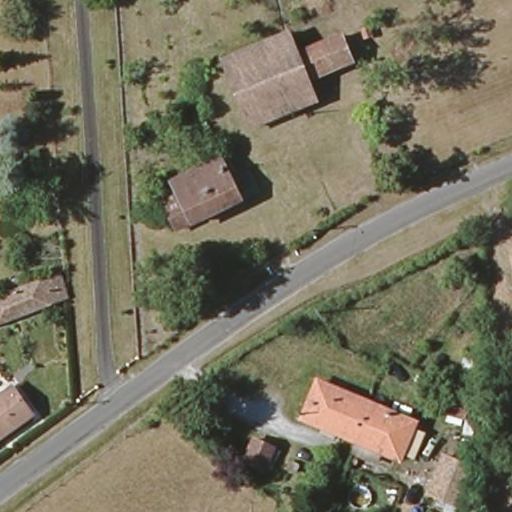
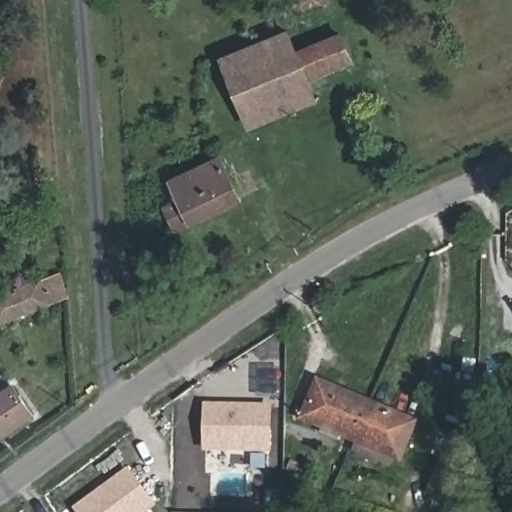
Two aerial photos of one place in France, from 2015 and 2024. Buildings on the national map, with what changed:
unchanged [(289,56),(228,83),(218,59),(290,27),(299,51),(289,56)]
unchanged [(299,51),(339,35),(349,57),(301,79),(239,106),(235,97),(228,83),(289,56),(299,51)]
unchanged [(310,101),(249,129),(239,106),(301,79),(310,101)]
unchanged [(245,209),(184,240),(171,215),(145,227),(137,212),(161,201),(164,206),(185,196),(181,191),(227,170),(245,209)]
unchanged [(0,324),(0,296),(60,275),(65,298),(0,324)]
unchanged [(0,382),(0,381),(6,389),(12,385),(33,416),(0,440),(0,382)]
unchanged [(402,456),(302,417),(315,381),(340,390),(417,417),(402,456)]
new [(203,451),(203,403),(272,404),(272,452),(203,451)]
new [(255,439),(274,448),(264,470),(244,462),(255,439)]
unchanged [(475,470),(464,494),(431,481),(441,454),(475,470)]
new [(157,506),(150,512),(75,512),(72,508),(128,467),(157,506)]

